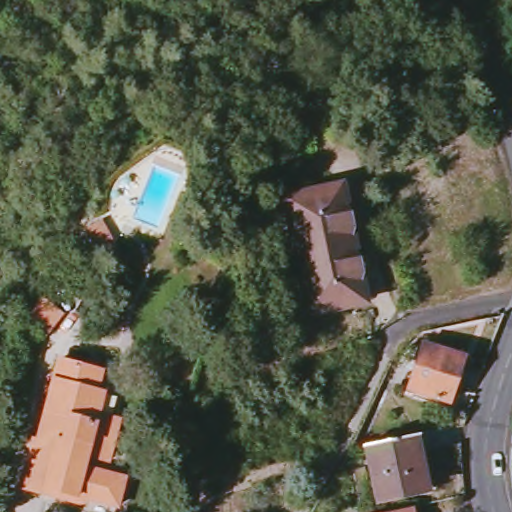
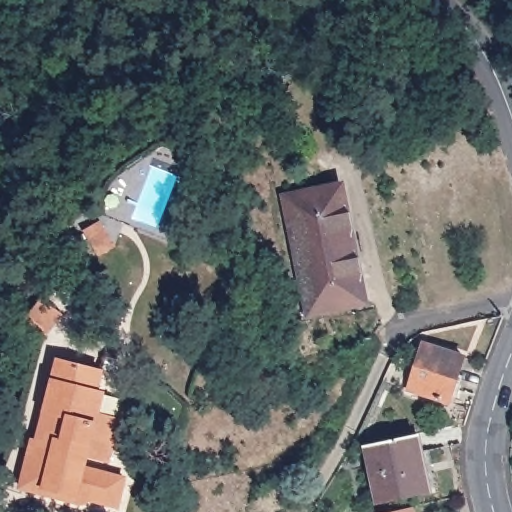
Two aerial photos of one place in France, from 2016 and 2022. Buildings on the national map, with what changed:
unchanged [(285,197),(340,186),(363,301),(308,313),(285,197)]
unchanged [(87,230),(100,223),(113,245),(100,253),(87,230)]
unchanged [(47,333),(29,318),(43,300),(61,315),(47,333)]
unchanged [(409,389),(423,344),(464,357),(450,402),(409,389)]
unchanged [(88,503),(86,506),(84,507),(81,508),(79,507),(22,492),(34,444),(38,445),(40,439),(47,441),(49,435),(56,437),(60,420),(45,416),(58,365),(101,376),(95,396),(103,398),(97,420),(119,425),(107,466),(87,461),(84,472),(125,483),(117,510),(88,503)]
unchanged [(416,433),(430,490),(377,503),(365,445),(416,433)]
unchanged [(413,512),(386,512),(411,506),(413,512)]

